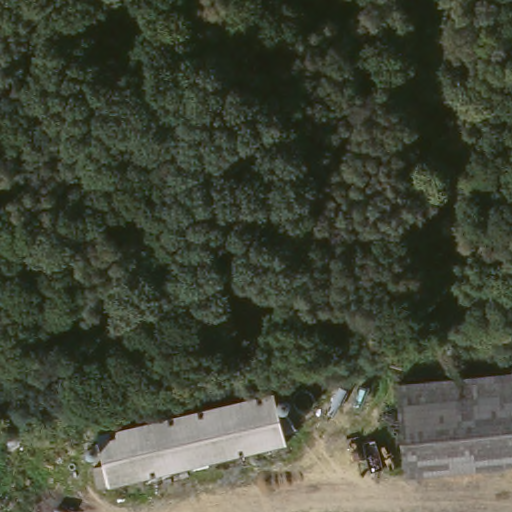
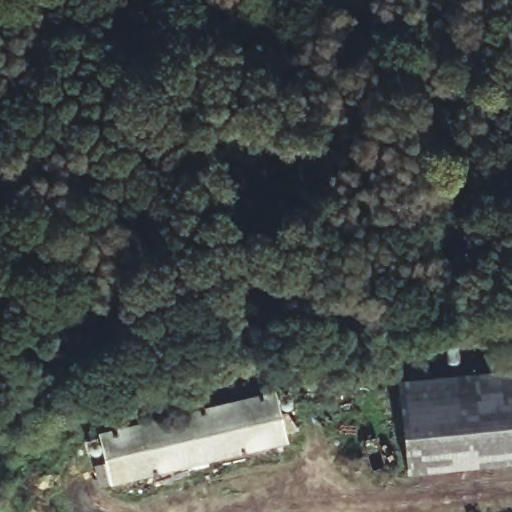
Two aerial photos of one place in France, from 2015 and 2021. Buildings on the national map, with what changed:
unchanged [(391,386),(512,374),(512,468),(402,480),(391,386)]
unchanged [(279,389),(289,441),(110,485),(96,432),(279,389)]

